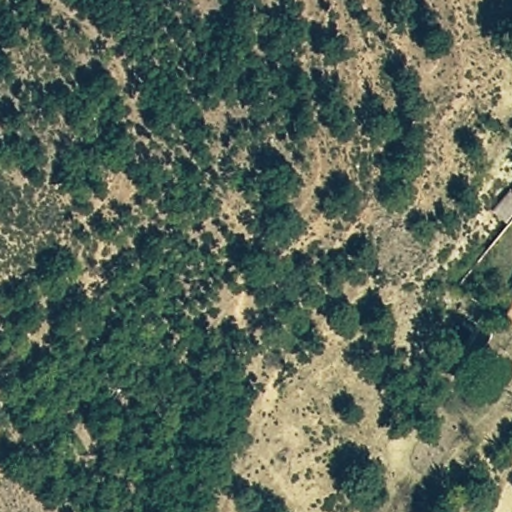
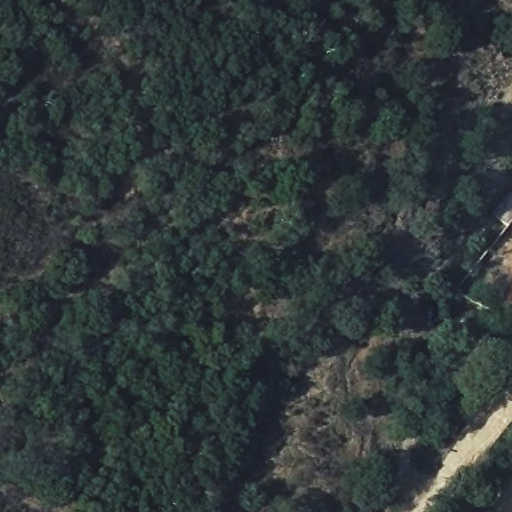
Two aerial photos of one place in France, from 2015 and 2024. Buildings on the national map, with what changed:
unchanged [(487,214),(512,186),(512,222),(507,230),(487,214)]
unchanged [(512,294),(512,326),(498,317),(511,296),(512,294)]

